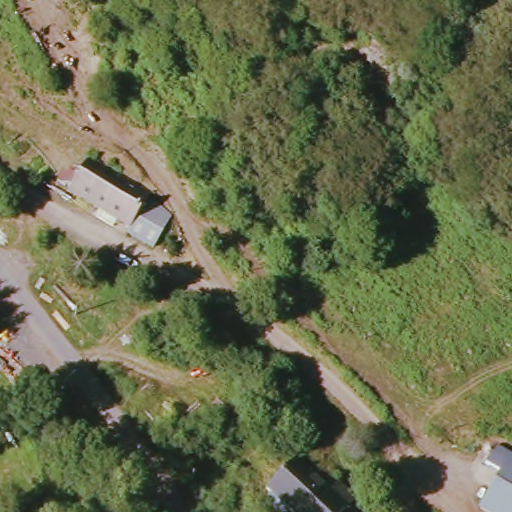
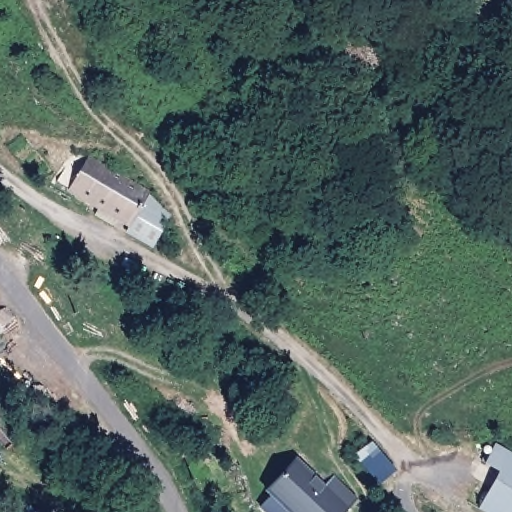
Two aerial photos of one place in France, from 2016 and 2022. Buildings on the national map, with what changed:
unchanged [(67,165),(77,171),(91,153),(147,195),(130,224),(55,184),(67,165)]
unchanged [(166,223),(151,249),(126,231),(130,224),(147,195),(166,223)]
unchanged [(496,466),(481,457),(494,440),(512,450),(512,512),(491,512),(473,501),(496,466)]
unchanged [(259,495),(290,463),(322,491),(329,482),(344,495),(349,504),(344,510),(342,512),(280,512),(259,495)]
unchanged [(100,472),(120,465),(120,478),(101,481),(100,472)]

